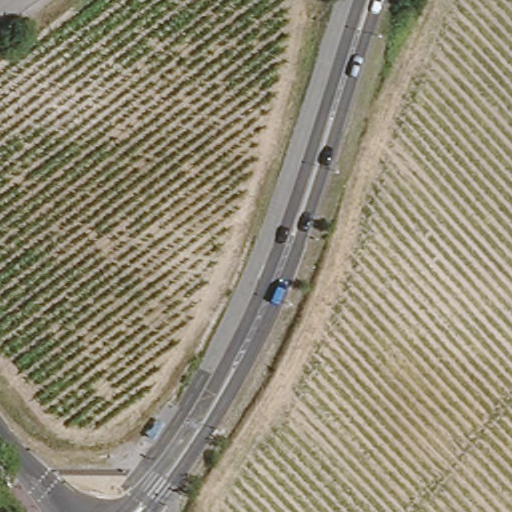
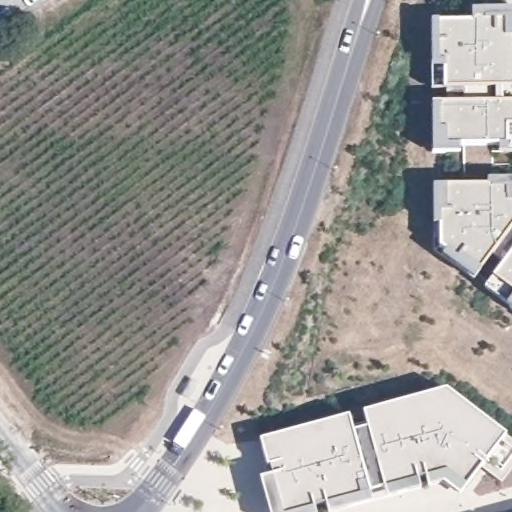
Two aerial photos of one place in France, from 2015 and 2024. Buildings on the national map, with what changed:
new [(437,22),(472,22),(472,17),(472,9),(512,9),(512,102),(464,103),(464,88),(438,88),(437,22)]
new [(437,19),(438,88),(432,89),(431,19),(437,19)]
new [(507,145),(439,145),(438,103),(464,102),(512,102),(512,125),(507,125),(507,145)]
new [(439,150),(432,150),(432,103),(438,103),(439,150)]
new [(500,145),(507,145),(507,125),(512,125),(512,152),(500,152),(500,145)]
new [(492,277),(503,262),(492,254),(480,269),(466,258),(462,263),(440,246),(440,210),(445,210),(445,185),(500,185),(500,179),(512,179),(512,309),(485,288),(492,277)]
new [(432,185),(445,185),(445,210),(440,210),(440,246),(462,263),(466,258),(480,269),(473,280),(433,250),(432,210),(432,185)]
new [(387,498),(384,487),(363,412),(446,389),(512,440),(512,469),(502,482),(480,466),(466,485),(459,494),(444,482),(387,498)]
new [(282,512),(270,465),(267,466),(260,440),(349,416),(369,491),(296,512),(282,512)]
new [(282,512),(271,512),(264,467),(267,466),(270,465),(282,512)]
new [(372,502),(337,512),(296,512),(369,491),(372,502)]

